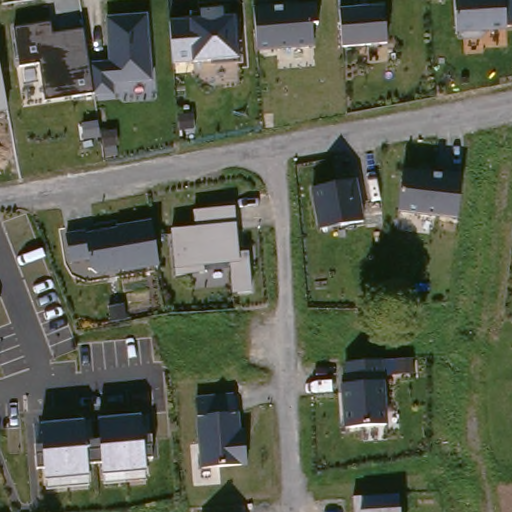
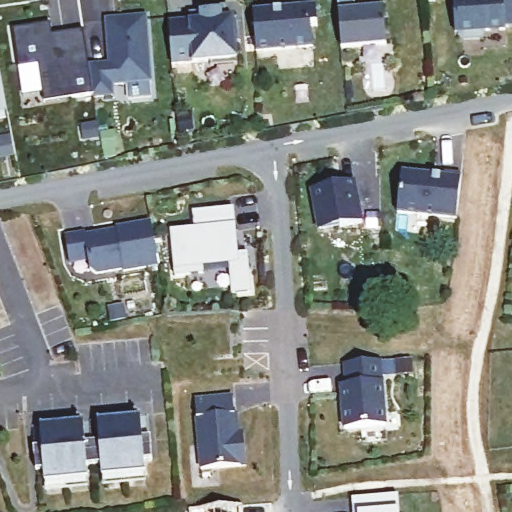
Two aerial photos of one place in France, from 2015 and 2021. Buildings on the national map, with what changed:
unchanged [(339,9),(338,1),(353,0),(354,8),(384,5),(387,44),(342,48),(339,9)]
unchanged [(455,34),(453,0),(512,0),(512,27),(505,27),(505,31),(486,32),(482,39),(466,40),(459,33),(455,34)]
unchanged [(254,8),(316,5),(318,26),(310,26),(312,47),(257,50),(254,8)]
unchanged [(192,64),(173,64),(170,20),(200,19),(200,10),(223,9),(224,18),(236,17),(238,60),(192,64)]
unchanged [(39,62),(19,65),(14,28),(50,23),(51,35),(84,31),(89,63),(109,62),(106,17),(148,15),(152,82),(113,85),(114,96),(94,98),(94,93),(45,101),(39,62)]
unchanged [(7,112),(0,113),(0,72),(7,112)]
unchanged [(398,210),(403,168),(463,176),(457,221),(398,210)]
unchanged [(311,189),(355,180),(363,222),(319,230),(311,189)]
unchanged [(231,292),(231,264),(175,269),(171,229),(195,227),(193,211),(233,207),(235,224),(238,253),(248,252),(252,292),(231,292)]
unchanged [(124,271),(124,269),(98,274),(90,268),(89,260),(70,263),(65,235),(86,232),(87,234),(117,229),(117,227),(151,221),(158,266),(124,271)]
unchanged [(340,385),(345,385),(343,364),(413,359),(414,374),(384,377),(385,381),(387,425),(345,428),(340,385)]
unchanged [(196,417),(194,396),(236,394),(239,414),(241,432),(244,432),(247,465),(201,469),(196,417)]
unchanged [(141,444),(150,442),(150,459),(143,459),(143,470),(142,481),(100,484),(99,474),(99,465),(85,465),(86,475),(85,485),(46,487),(44,479),(43,468),(35,469),(34,448),(42,446),(40,424),(82,422),(83,443),(99,440),(97,419),(140,417),(141,444)]
unchanged [(399,510),(399,512),(353,512),(352,498),(398,495),(399,510)]

